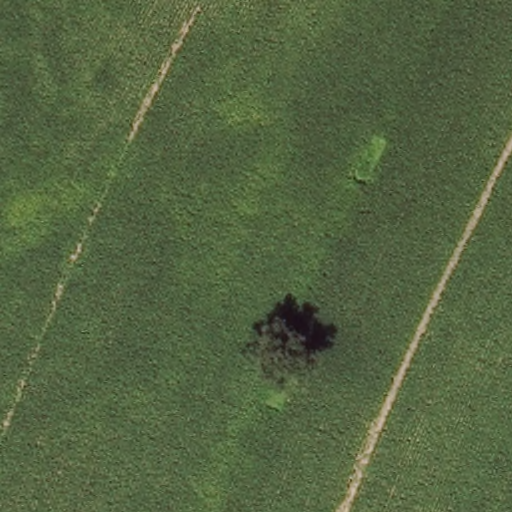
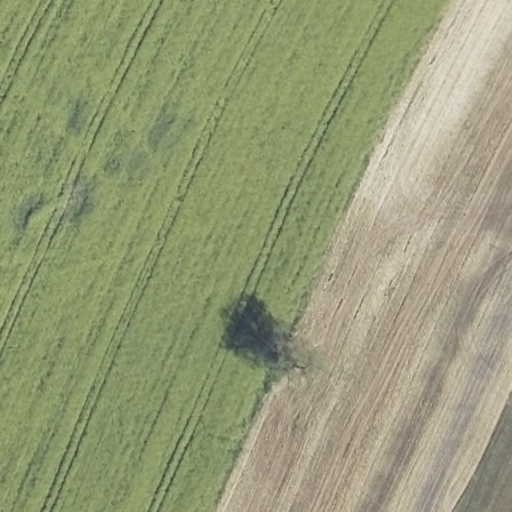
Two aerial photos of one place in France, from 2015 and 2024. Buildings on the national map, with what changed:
[]

